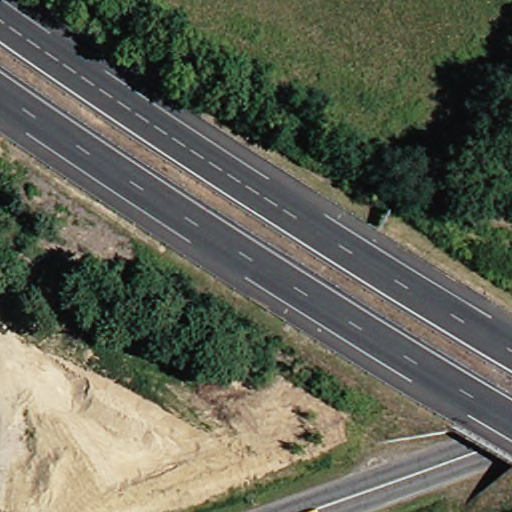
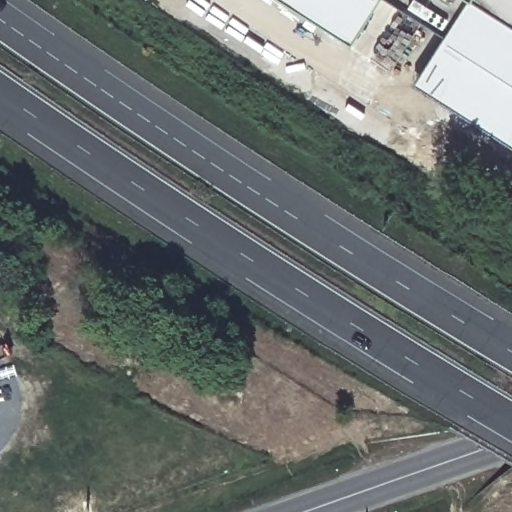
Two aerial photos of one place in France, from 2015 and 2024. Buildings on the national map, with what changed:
new [(287,0),(379,0),(353,41),(287,0)]
new [(388,0),(471,0),(446,37),(388,0)]
new [(418,83),(446,37),(471,0),(475,0),(512,24),(512,143),(418,83)]
new [(475,0),(512,0),(512,24),(475,0)]

